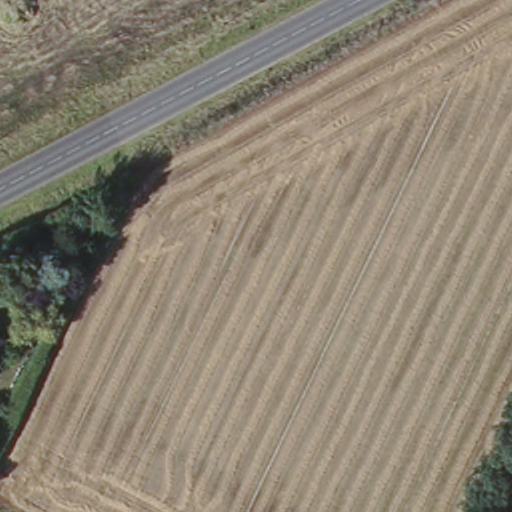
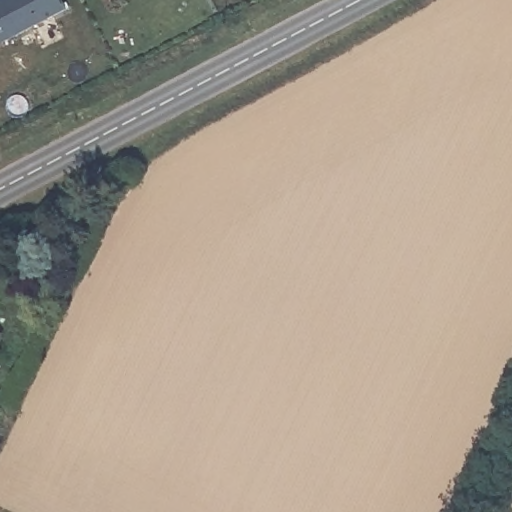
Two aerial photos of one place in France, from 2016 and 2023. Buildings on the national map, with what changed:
new [(59,0),(64,9),(0,42),(0,0),(59,0)]
unchanged [(7,333),(0,348),(0,330),(7,333)]

